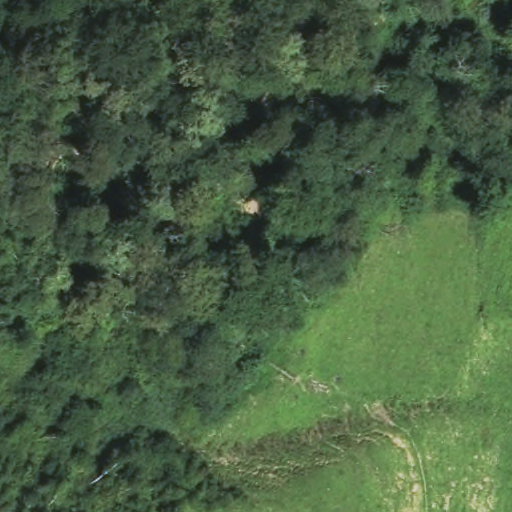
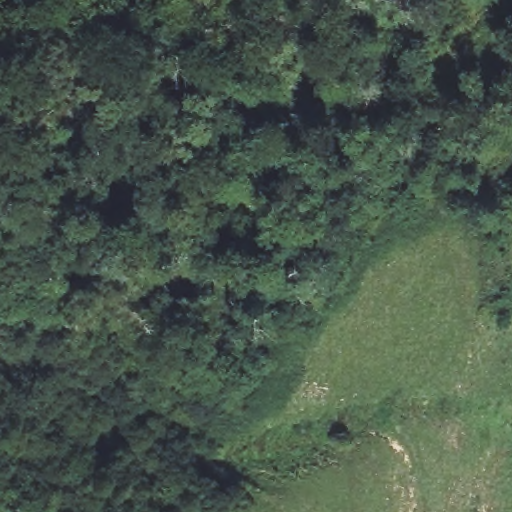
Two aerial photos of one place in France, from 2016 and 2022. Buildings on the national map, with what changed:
[]

